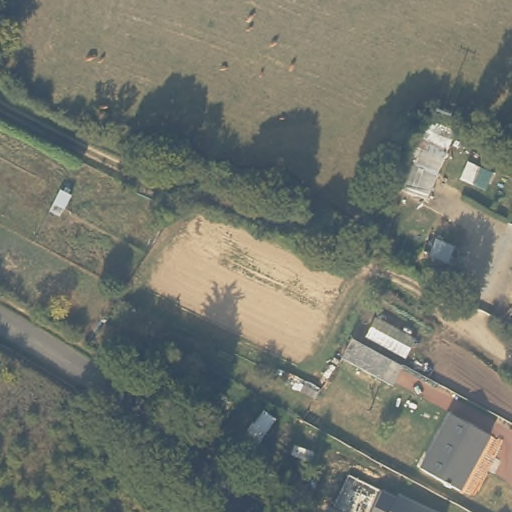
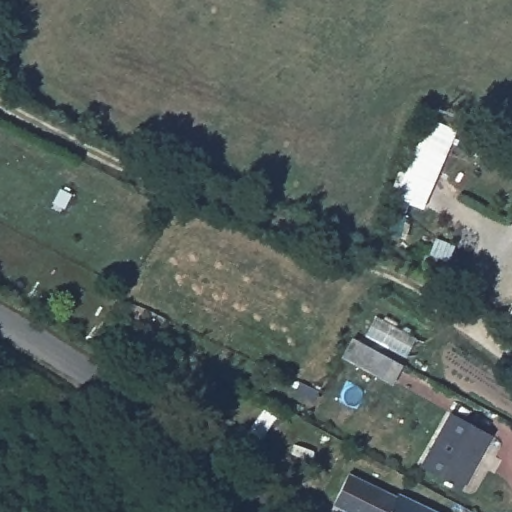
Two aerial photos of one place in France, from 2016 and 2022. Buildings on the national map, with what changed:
unchanged [(457,144),(440,180),(418,170),(428,138),(457,144)]
unchanged [(454,241),(447,261),(422,250),(430,234),(454,241)]
unchanged [(388,375),(337,346),(348,327),(398,357),(388,375)]
unchanged [(491,433),(462,487),(420,465),(449,410),(491,433)]
unchanged [(413,494),(445,512),(365,512),(363,511),(379,482),(410,498),(413,494)]

